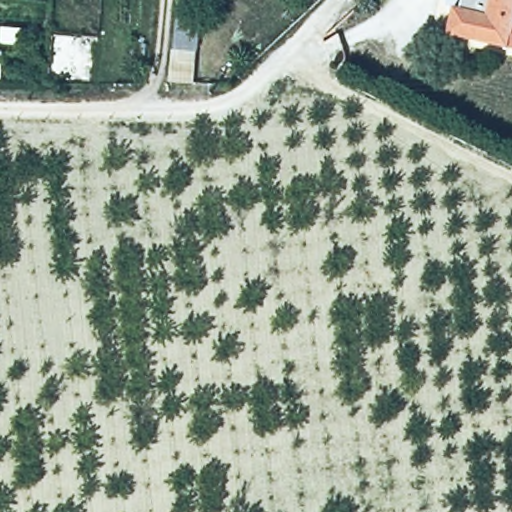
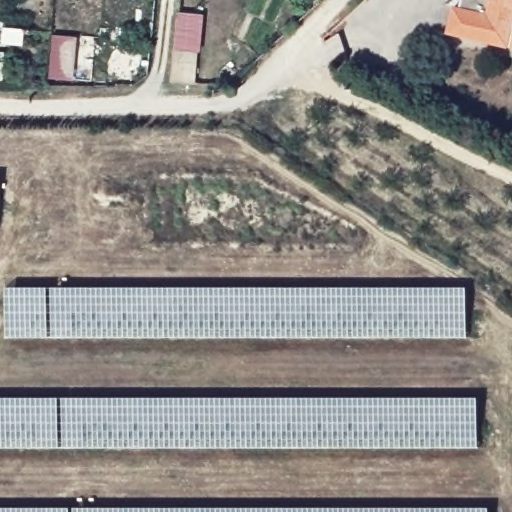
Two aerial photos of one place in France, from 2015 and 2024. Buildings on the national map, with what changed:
unchanged [(446,33),(452,5),(485,14),(488,0),(512,0),(512,49),(446,33)]
new [(203,13),(193,88),(166,85),(174,10),(203,13)]
new [(467,336),(5,336),(5,286),(467,287),(467,336)]
new [(0,447),(0,397),(477,397),(478,447),(0,447)]
new [(489,512),(0,512),(0,507),(489,507),(489,512)]

